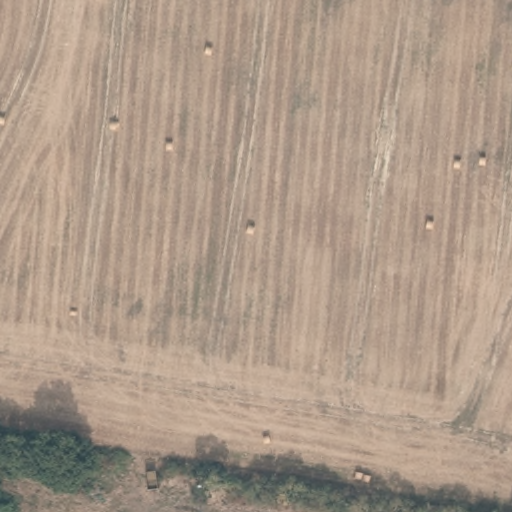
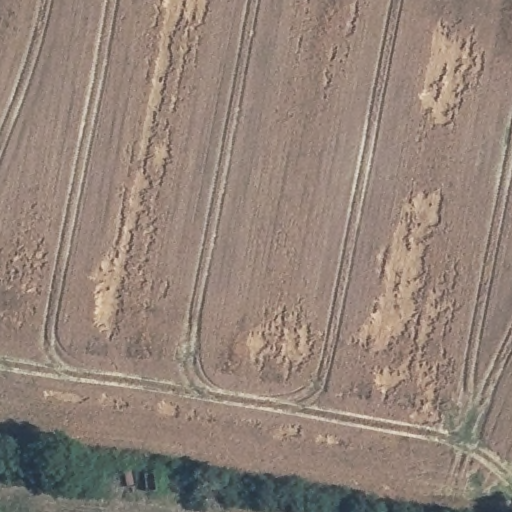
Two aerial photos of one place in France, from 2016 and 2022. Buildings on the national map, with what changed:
[]

